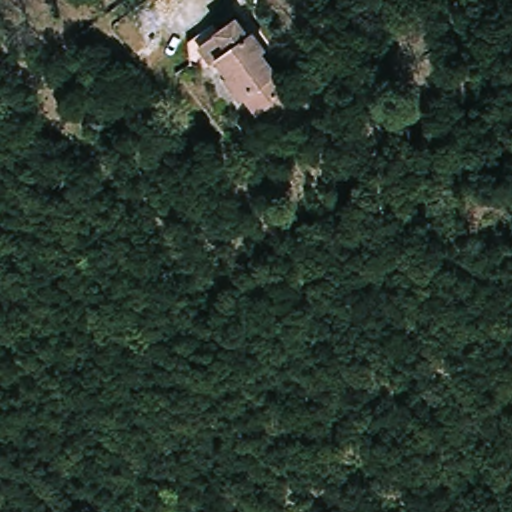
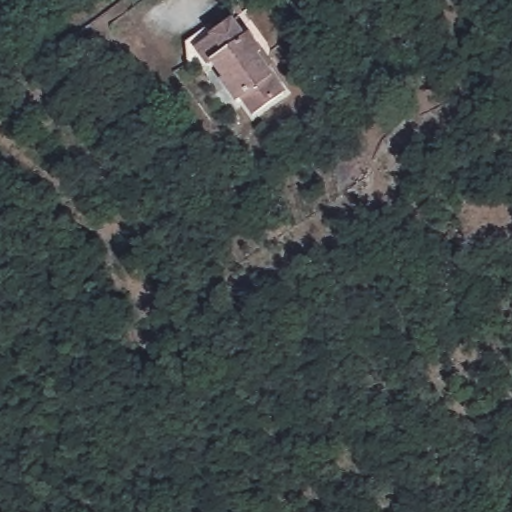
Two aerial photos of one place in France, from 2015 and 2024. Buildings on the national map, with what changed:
unchanged [(215,54),(193,58),(189,35),(210,18),(222,33),(218,36),(231,57),(222,65),(215,54)]
unchanged [(242,18),(255,39),(260,36),(272,51),(266,55),(294,93),(265,113),(257,100),(250,108),(222,65),(231,57),(218,36),(222,33),(242,18)]

